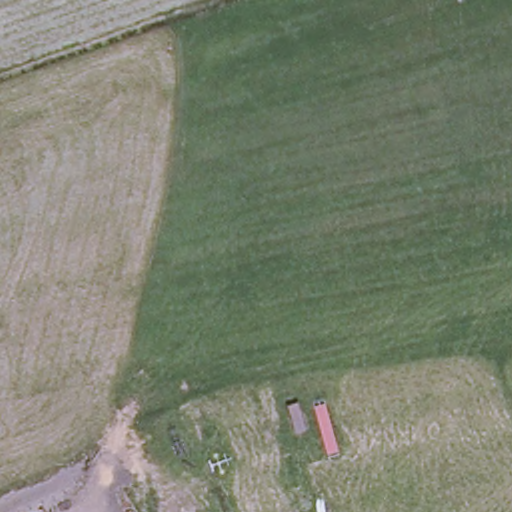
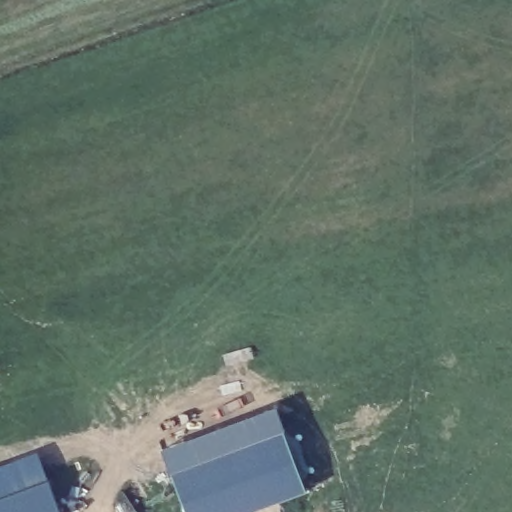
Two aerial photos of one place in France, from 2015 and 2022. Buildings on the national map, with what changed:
new [(307,492),(252,512),(186,512),(171,472),(283,431),(307,492)]
new [(0,497),(48,479),(63,512),(0,512),(0,497)]

